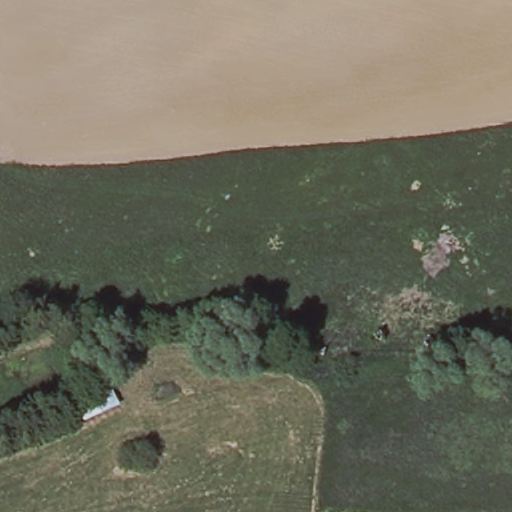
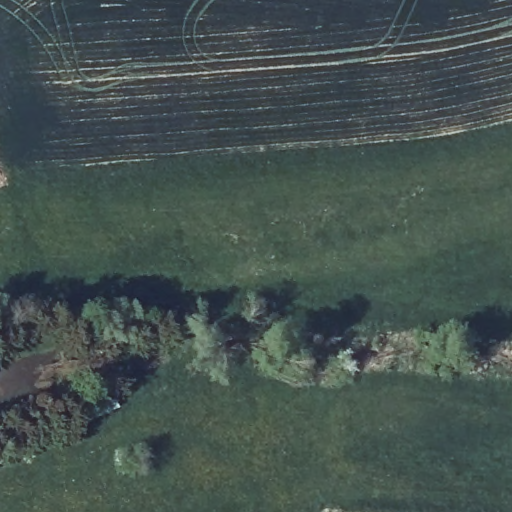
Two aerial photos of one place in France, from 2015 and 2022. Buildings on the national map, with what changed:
unchanged [(117,406),(80,421),(76,415),(68,420),(60,406),(108,384),(117,406)]

